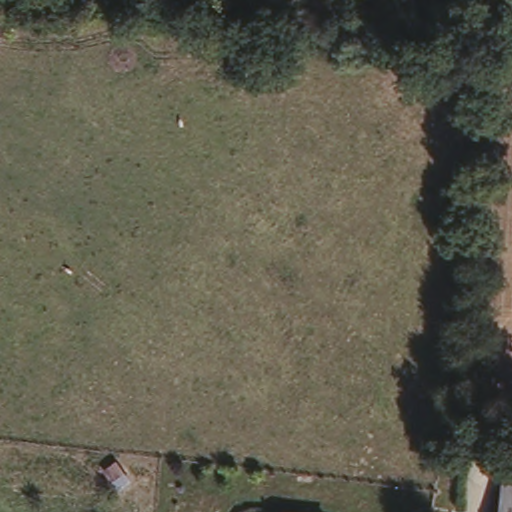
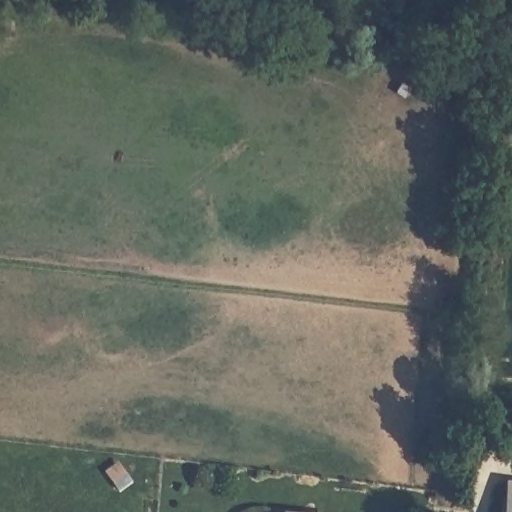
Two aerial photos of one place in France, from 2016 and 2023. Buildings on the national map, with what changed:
unchanged [(18,11),(15,30),(0,28),(0,9),(18,11)]
unchanged [(512,512),(497,512),(501,474),(512,476),(512,512)]
unchanged [(317,512),(264,512),(264,506),(281,506),(317,512)]

